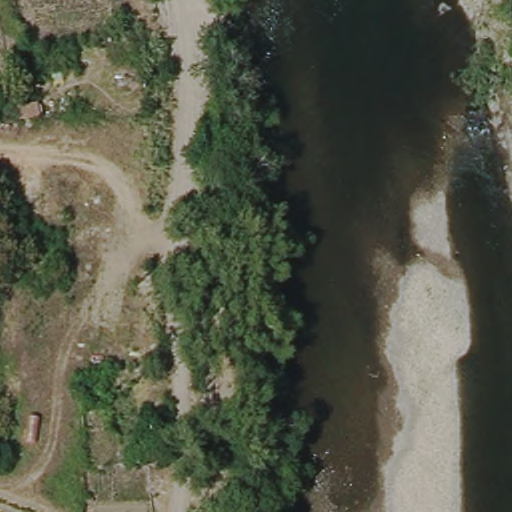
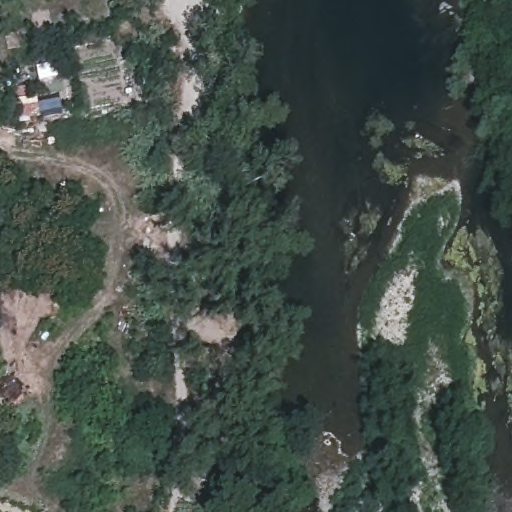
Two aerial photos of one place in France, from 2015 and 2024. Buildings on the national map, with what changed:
unchanged [(12,104),(32,100),(35,114),(14,117),(12,104)]

